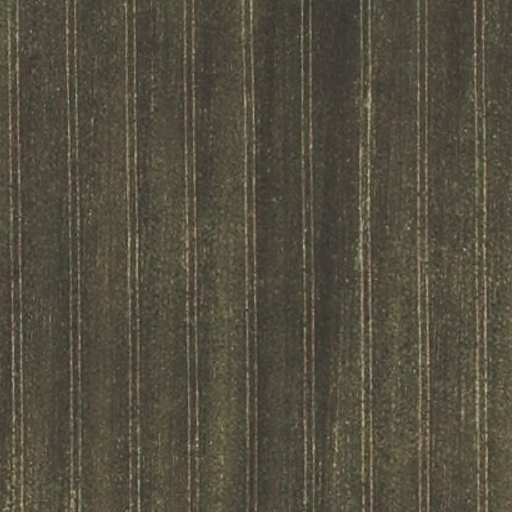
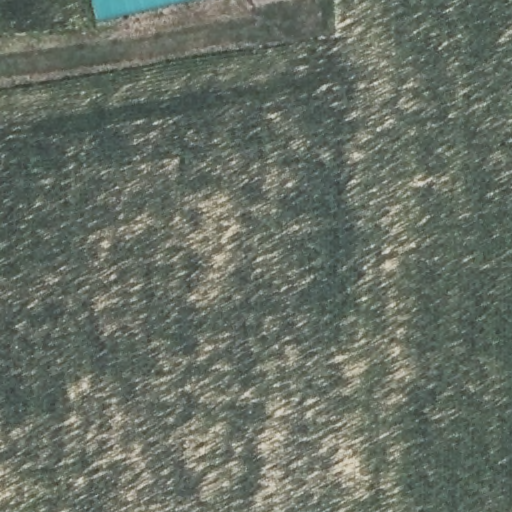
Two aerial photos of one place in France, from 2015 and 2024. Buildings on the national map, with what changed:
new [(98,22),(93,0),(195,0),(98,22)]

